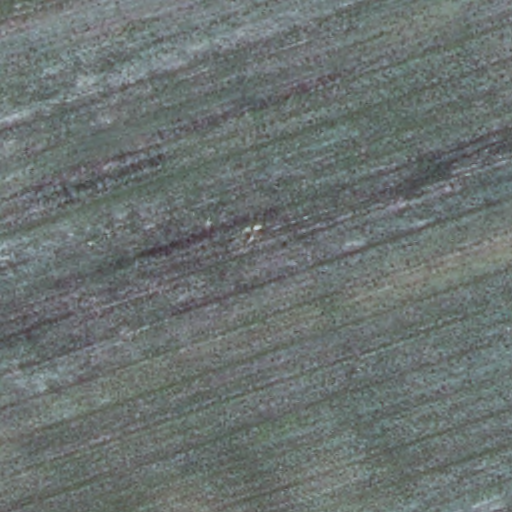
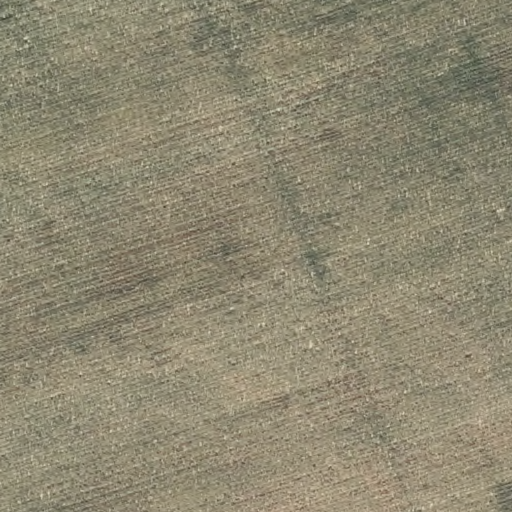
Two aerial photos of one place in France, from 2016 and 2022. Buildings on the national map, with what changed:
[]

